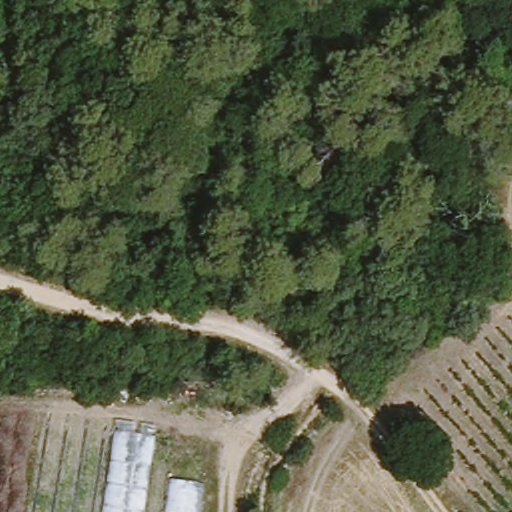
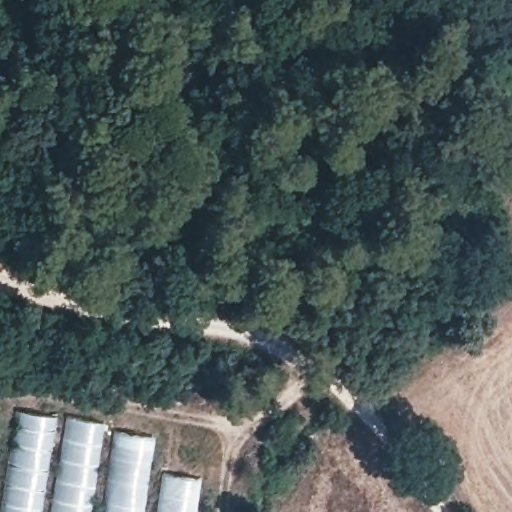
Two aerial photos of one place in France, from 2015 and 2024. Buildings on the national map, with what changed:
new [(1,512),(17,409),(115,423),(101,512),(1,512)]
unchanged [(142,512),(101,512),(115,423),(154,430),(142,512)]
new [(157,512),(162,473),(200,478),(196,512),(157,512)]

